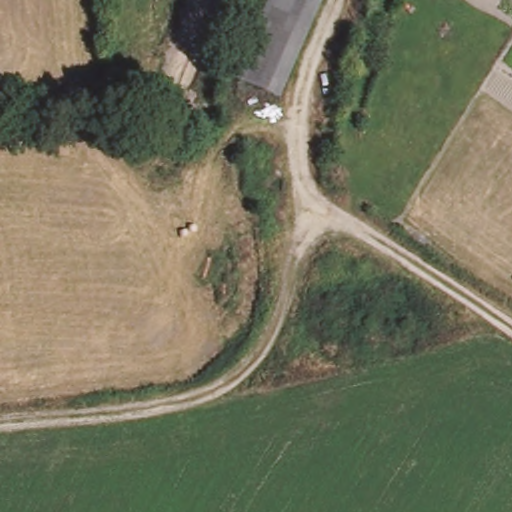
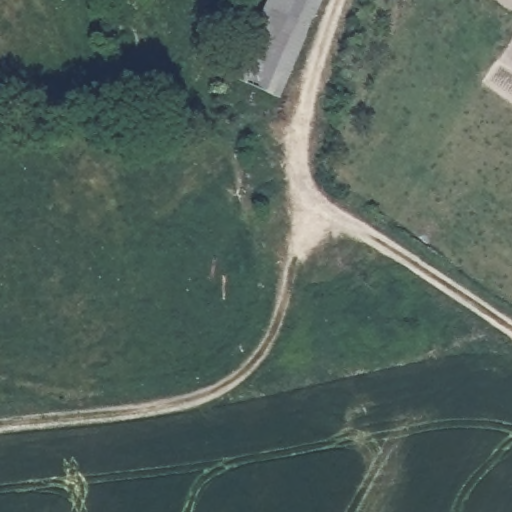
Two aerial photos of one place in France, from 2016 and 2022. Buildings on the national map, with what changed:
unchanged [(230,70),(270,0),(310,0),(259,87),(230,70)]
unchanged [(324,0),(271,94),(259,87),(310,0),(324,0)]

